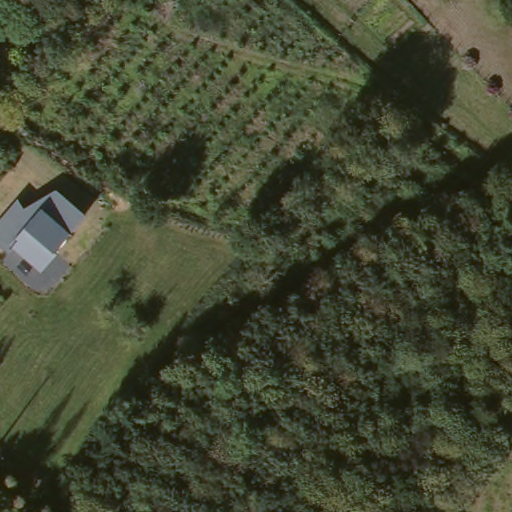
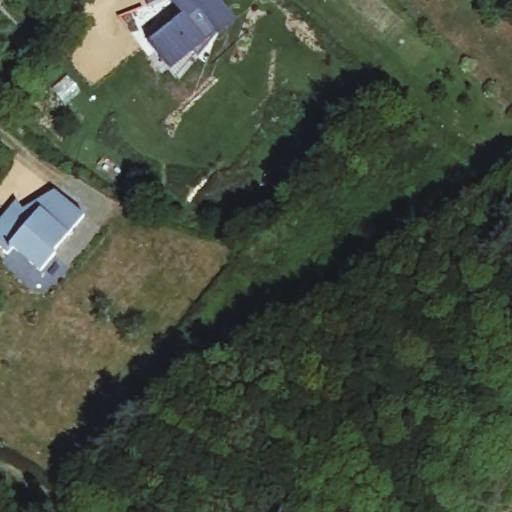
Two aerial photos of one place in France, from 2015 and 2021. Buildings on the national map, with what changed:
new [(147,0),(165,0),(149,6),(147,0)]
new [(171,0),(219,0),(235,20),(170,69),(150,41),(183,17),(171,0)]
new [(41,42),(59,58),(50,69),(32,54),(41,42)]
unchanged [(46,255),(48,259),(30,279),(0,254),(0,208),(2,205),(13,214),(45,191),(81,223),(46,255)]

